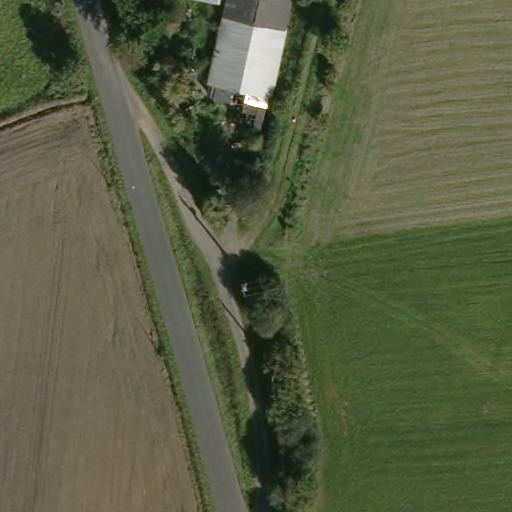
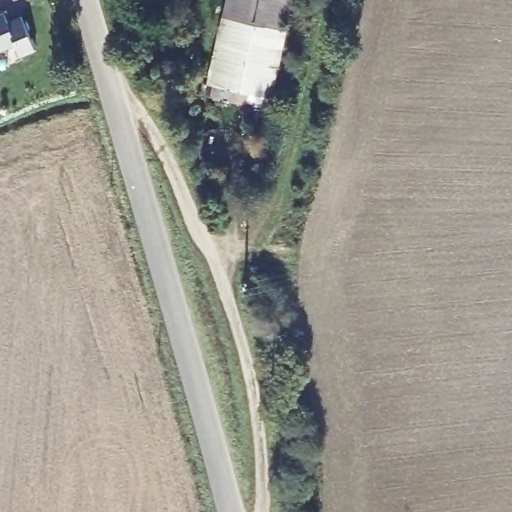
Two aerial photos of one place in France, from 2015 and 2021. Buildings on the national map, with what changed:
unchanged [(296,0),(271,93),(213,78),(232,0),(296,0)]
new [(4,14),(7,23),(22,16),(34,49),(20,56),(14,43),(0,49),(0,16),(4,14)]
unchanged [(269,277),(269,288),(248,288),(248,277),(269,277)]

